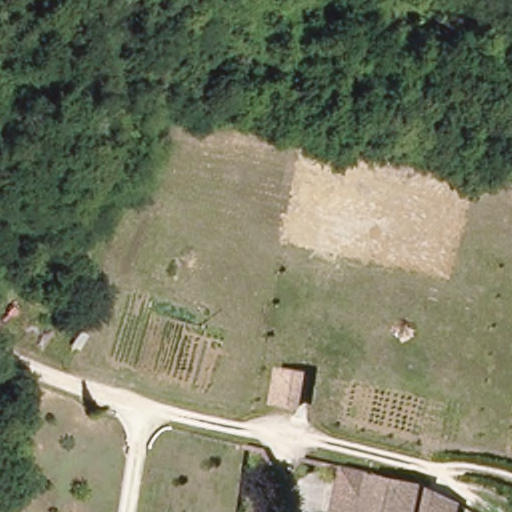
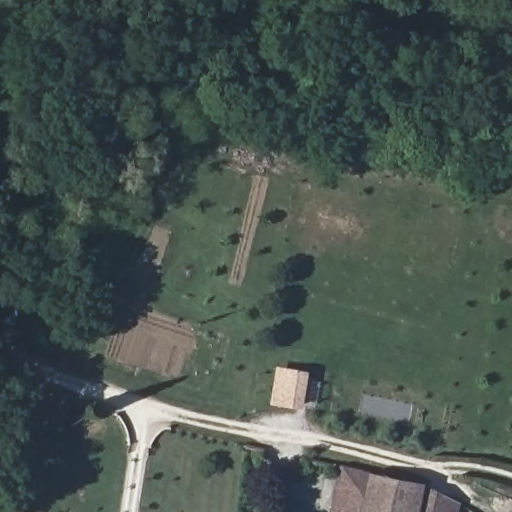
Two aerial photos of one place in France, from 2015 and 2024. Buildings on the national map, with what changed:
unchanged [(279,370),(305,375),(298,405),(273,401),(279,370)]
unchanged [(368,472),(367,476),(360,512),(331,512),(341,466),(368,472)]
unchanged [(368,472),(390,476),(422,483),(421,489),(448,500),(447,512),(416,512),(360,512),(367,476),(368,472)]

